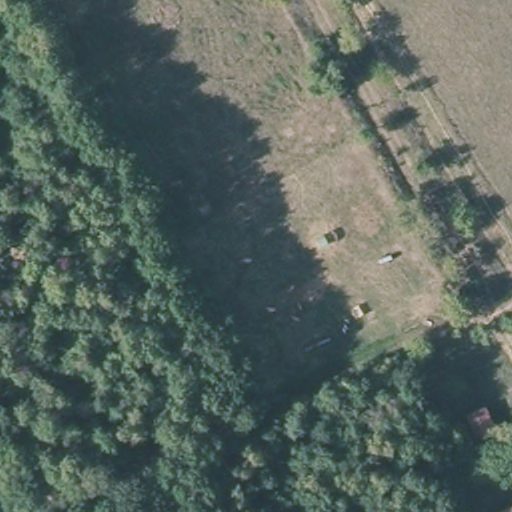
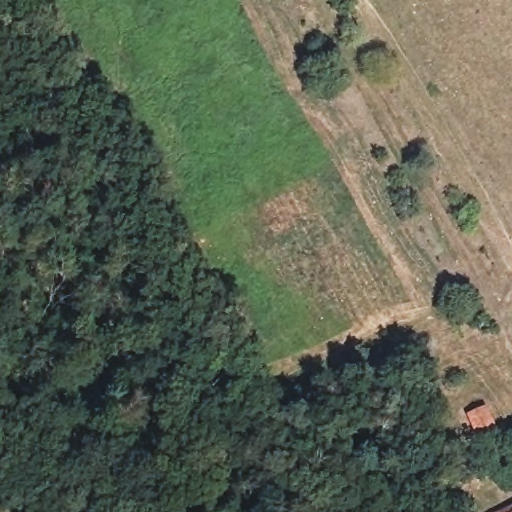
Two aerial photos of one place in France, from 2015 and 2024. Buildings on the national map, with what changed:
unchanged [(512,512),(506,512),(512,510),(512,512)]

